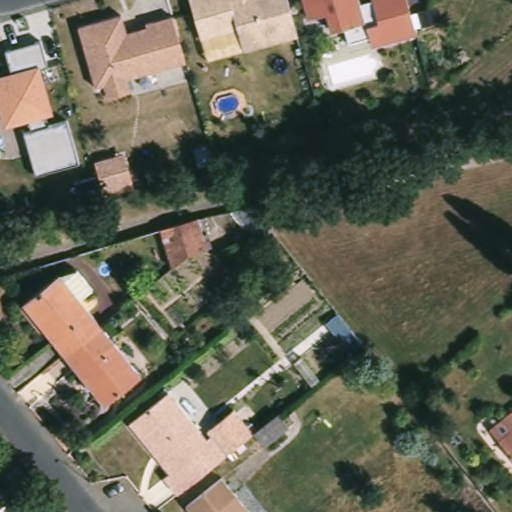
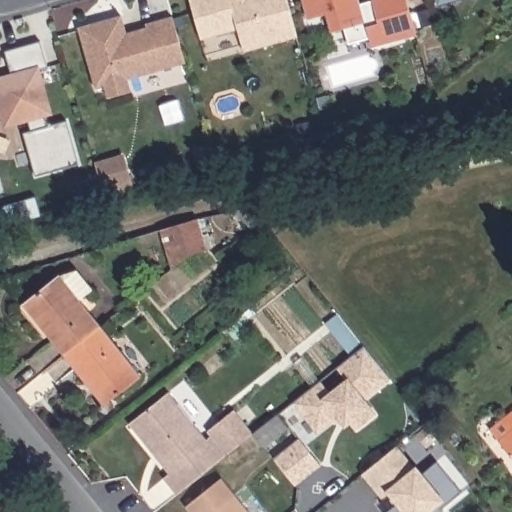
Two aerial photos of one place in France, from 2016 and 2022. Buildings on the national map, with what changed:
unchanged [(244,52),(237,27),(200,38),(191,0),(285,0),(296,37),(244,52)]
unchanged [(345,45),(340,27),(327,31),(322,13),(304,18),(299,0),(354,0),(355,5),(369,1),(369,0),(403,0),(412,36),(387,42),(369,47),(367,39),(345,45)]
unchanged [(157,66),(122,76),(127,92),(104,99),(100,86),(92,89),(75,28),(118,16),(123,34),(143,28),(142,25),(169,17),(182,64),(158,71),(157,66)]
unchanged [(23,134),(30,131),(26,121),(1,127),(0,121),(0,76),(14,72),(6,53),(39,45),(46,67),(38,69),(52,114),(46,117),(48,126),(66,121),(77,165),(38,176),(23,134)]
unchanged [(92,161),(123,153),(132,187),(104,196),(92,161)]
new [(272,246),(262,233),(251,235),(232,211),(252,207),(270,231),(278,241),(272,246)]
unchanged [(200,219),(202,253),(184,255),(168,267),(163,229),(182,224),(200,219)]
unchanged [(26,305),(62,277),(65,280),(69,276),(88,297),(81,303),(103,330),(67,357),(26,305)]
new [(306,418),(293,402),(320,380),(330,393),(346,380),(336,367),(352,355),(326,323),(338,315),(363,345),(390,378),(364,400),(376,415),(357,430),(350,421),(344,425),(337,415),(324,426),(317,431),(306,418)]
unchanged [(103,330),(138,376),(104,403),(67,357),(103,330)]
unchanged [(201,433),(206,440),(212,433),(229,452),(175,497),(161,481),(170,476),(129,427),(171,393),(201,433)]
unchanged [(275,417),(288,432),(261,451),(251,436),(229,452),(212,433),(206,440),(201,433),(228,412),(254,433),(275,417)]
unchanged [(512,416),(512,458),(491,431),(512,416)]
new [(295,485),(280,467),(273,458),(297,438),(298,437),(305,447),(320,465),(295,485)]
new [(389,492),(381,499),(361,475),(396,447),(420,476),(436,462),(461,493),(440,510),(442,512),(387,512),(393,507),(388,501),(392,497),(389,492)]
unchanged [(2,455),(13,467),(5,472),(0,467),(0,457),(2,455)]
unchanged [(229,490),(246,512),(200,512),(229,490)]

